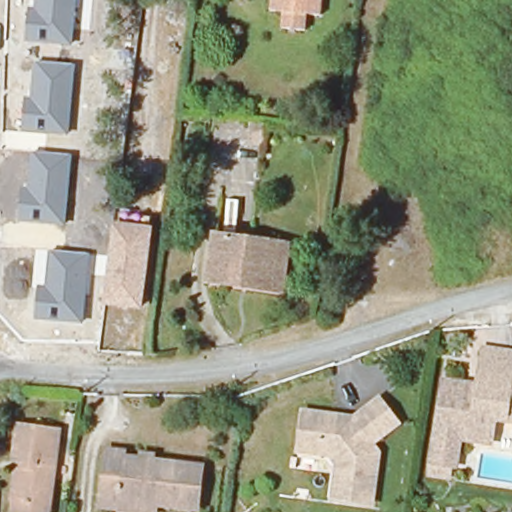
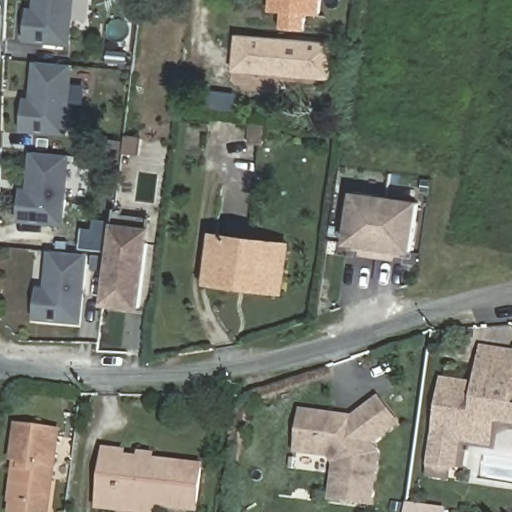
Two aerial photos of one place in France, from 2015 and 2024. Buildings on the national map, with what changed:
unchanged [(76,0),(73,46),(26,42),(29,8),(34,9),(35,0),(76,0)]
unchanged [(307,19),(305,35),(281,33),(283,17),(270,16),(271,0),(322,0),(321,20),(307,19)]
new [(335,44),(332,80),(234,72),(237,35),(335,44)]
unchanged [(34,62),(75,65),(69,136),(23,132),(26,98),(31,99),(34,62)]
unchanged [(33,152),(71,155),(65,226),(19,222),(22,188),(28,189),(33,152)]
new [(352,195),(416,204),(409,253),(392,251),(391,260),(361,255),(362,247),(345,244),(352,195)]
unchanged [(114,222),(119,222),(119,215),(148,219),(147,227),(155,228),(141,312),(101,307),(114,222)]
unchanged [(219,240),(285,249),(278,297),(213,287),(219,240)]
unchanged [(83,323),(35,320),(38,286),(46,287),(49,252),(90,255),(83,323)]
unchanged [(475,443),(459,441),(455,469),(450,468),(449,480),(431,477),(444,383),(478,387),(483,351),(512,354),(512,423),(497,421),(493,423),(490,445),(475,443)]
unchanged [(304,412),(308,412),(353,417),(354,418),(381,399),(399,424),(372,443),(378,452),(373,503),(334,499),(337,465),(333,455),(321,453),(302,452),(300,451),(304,412)]
unchanged [(13,471),(19,433),(60,438),(51,512),(17,512),(14,512),(18,478),(22,479),(23,472),(13,471)]
unchanged [(203,467),(198,510),(120,500),(119,508),(100,506),(106,450),(125,452),(125,457),(203,467)]

